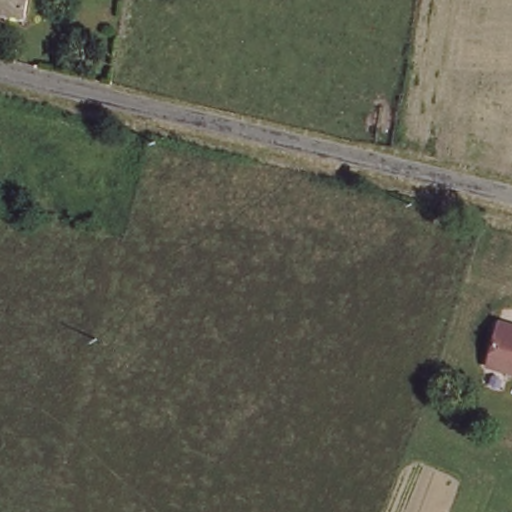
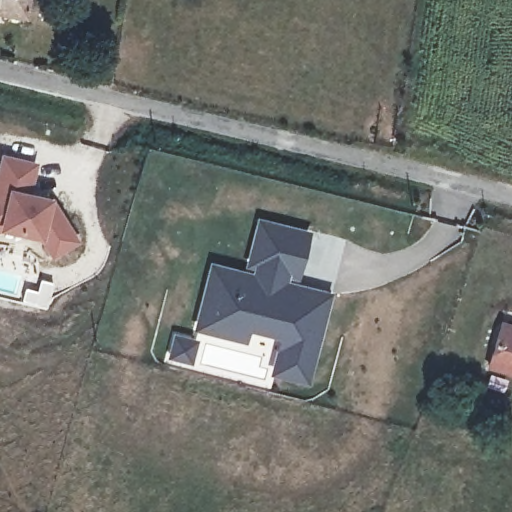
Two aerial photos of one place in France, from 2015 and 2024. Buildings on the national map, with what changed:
unchanged [(0,6),(0,0),(25,0),(23,11),(0,6)]
new [(53,259),(36,239),(29,237),(0,229),(0,155),(1,152),(38,161),(26,189),(53,197),(52,201),(80,242),(53,259)]
new [(290,326),(250,316),(246,333),(203,322),(217,265),(260,275),(263,260),(255,258),(263,219),(307,230),(298,268),(287,266),(285,281),(330,291),(315,350),(309,373),(280,367),(286,342),(290,326)]
unchanged [(497,321),(512,325),(512,365),(488,359),(497,321)]

